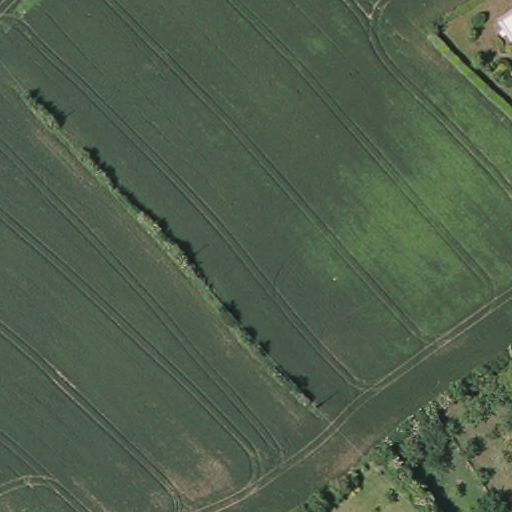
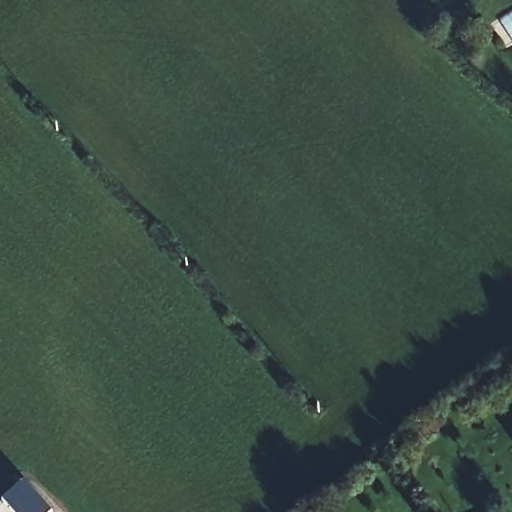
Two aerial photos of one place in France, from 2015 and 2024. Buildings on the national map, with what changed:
new [(50,512),(12,512),(3,501),(23,482),(50,512)]

